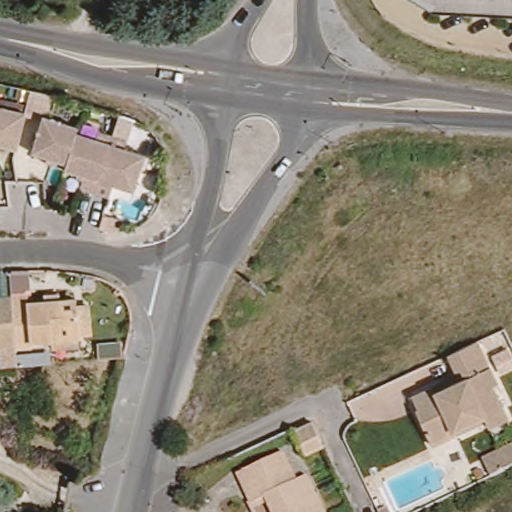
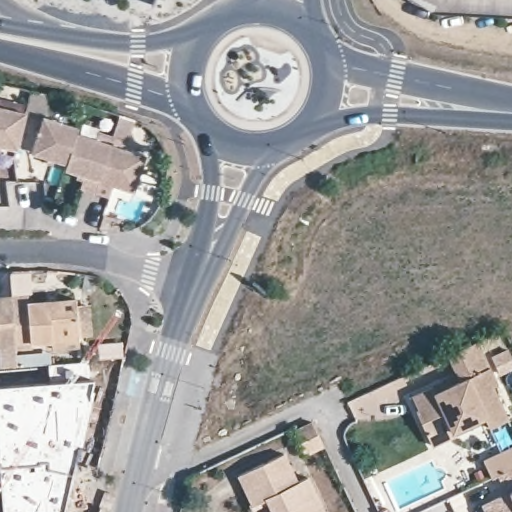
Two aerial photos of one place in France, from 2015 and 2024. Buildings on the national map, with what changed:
unchanged [(432,5),(423,0),(512,0),(512,10),(432,5)]
unchanged [(23,146),(6,143),(5,149),(0,148),(0,109),(29,114),(23,146)]
unchanged [(35,154),(46,118),(82,129),(80,134),(68,172),(57,169),(50,167),(52,159),(35,154)]
unchanged [(68,172),(80,134),(101,140),(103,133),(118,138),(100,197),(83,192),(85,184),(80,182),(81,175),(68,172)]
unchanged [(115,192),(113,201),(100,197),(118,138),(131,141),(128,149),(147,155),(136,192),(125,188),(123,194),(115,192)]
unchanged [(20,327),(3,329),(4,342),(0,342),(0,296),(18,294),(20,327)]
unchanged [(60,342),(21,344),(20,327),(18,294),(35,294),(35,300),(82,298),(86,339),(86,346),(60,348),(60,342)]
unchanged [(435,445),(420,411),(423,409),(417,396),(437,386),(461,374),(451,354),(480,340),(501,383),(496,385),(512,417),(494,426),(491,419),(461,433),(435,445)]
new [(92,378),(89,407),(80,444),(75,444),(59,512),(0,512),(0,384),(78,377),(92,378)]
unchanged [(321,444),(304,454),(292,429),(310,421),(321,444)]
new [(477,504),(503,492),(494,474),(488,478),(480,460),(512,444),(512,512),(481,512),(477,504)]
demolished [(480,460),(512,444),(512,466),(488,478),(480,460)]
unchanged [(264,494),(251,501),(237,471),(284,449),(296,476),(307,472),(326,512),(325,512),(272,512),(264,494)]
unchanged [(68,479),(75,481),(69,509),(63,508),(68,479)]

